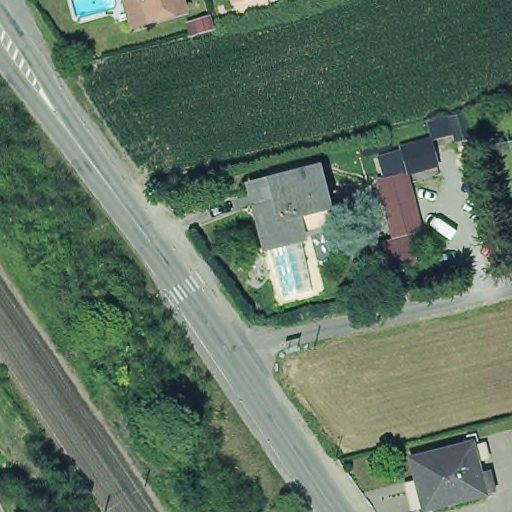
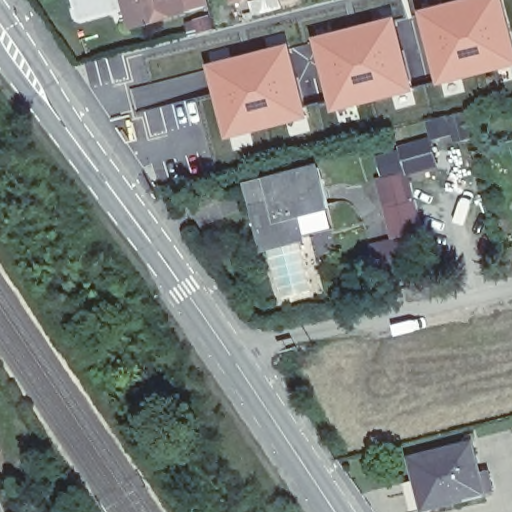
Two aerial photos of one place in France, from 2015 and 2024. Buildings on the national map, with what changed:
unchanged [(125,0),(183,0),(186,11),(147,22),(133,26),(125,0)]
new [(457,0),(505,0),(512,30),(512,67),(440,84),(419,10),(457,0)]
new [(397,15),(417,90),(334,110),(314,36),(397,15)]
new [(291,42),(310,118),(228,140),(209,63),(291,42)]
new [(203,70),(207,87),(134,110),(128,88),(203,70)]
new [(396,236),(382,180),(387,179),(387,177),(382,159),(404,152),(403,150),(404,150),(431,141),(438,166),(411,174),(408,174),(422,230),(412,232),(419,264),(409,266),(383,273),(376,245),(402,239),(401,235),(396,236)]
unchanged [(319,168),(329,208),(298,215),(303,238),(264,247),(249,185),(319,168)]
unchanged [(484,493),(426,507),(420,480),(416,481),(410,457),(472,443),(480,476),(488,475),(493,491),(484,493)]

